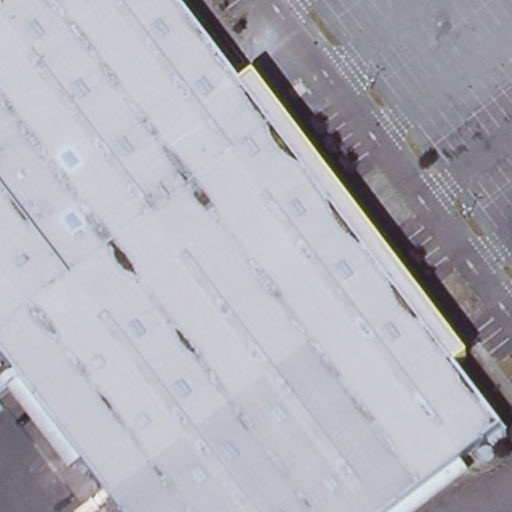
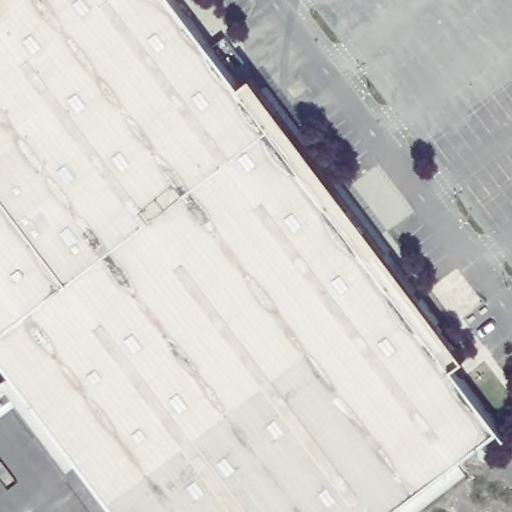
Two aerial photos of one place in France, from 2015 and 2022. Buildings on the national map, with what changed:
unchanged [(13,382),(0,392),(0,2),(0,0),(179,0),(238,77),(250,67),(466,350),(452,361),(505,433),(461,465),(401,512),(113,512),(13,382)]
unchanged [(461,465),(470,476),(423,512),(401,512),(461,465)]

